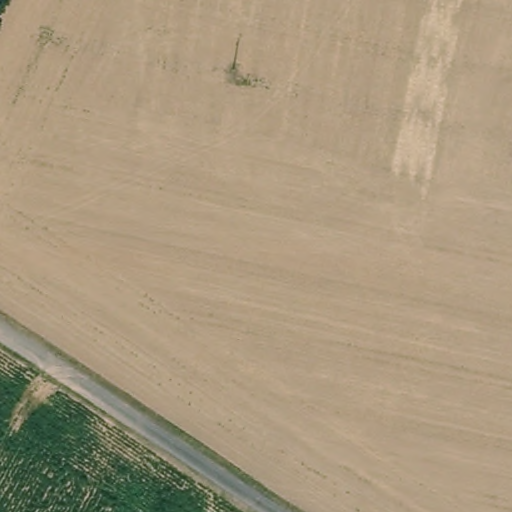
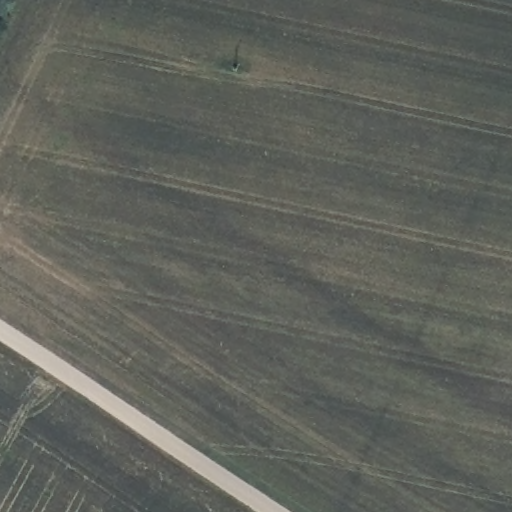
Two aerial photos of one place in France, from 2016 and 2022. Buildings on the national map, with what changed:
[]

